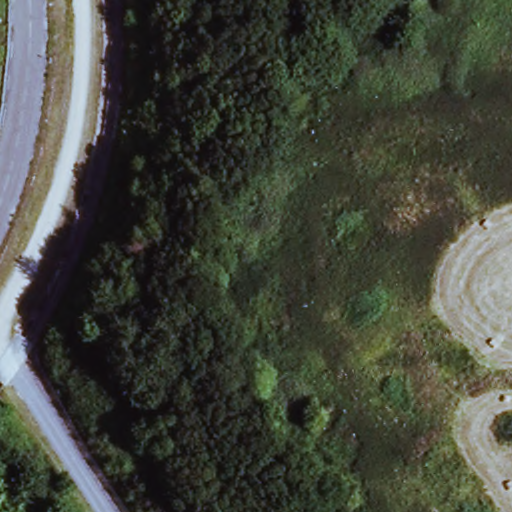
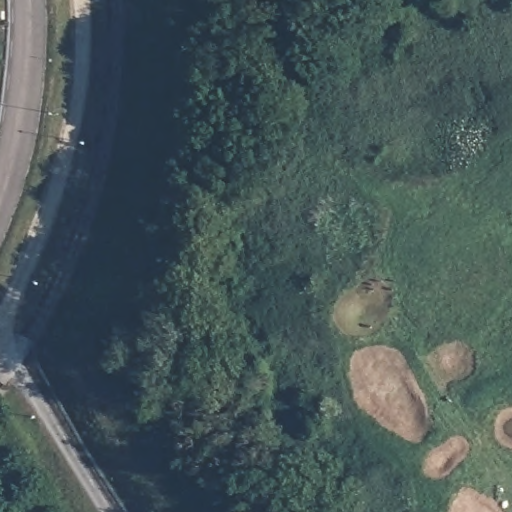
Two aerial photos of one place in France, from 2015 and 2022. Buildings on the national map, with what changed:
[]

